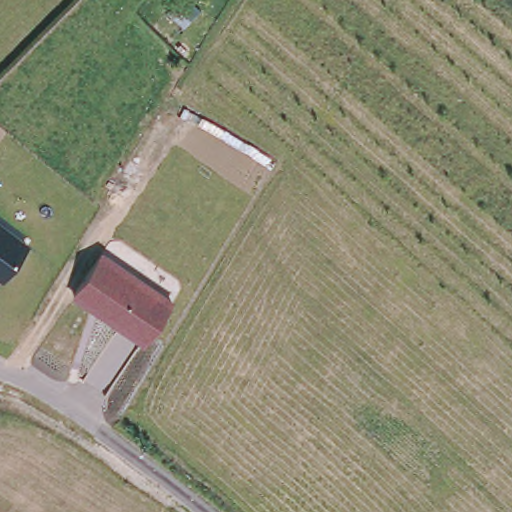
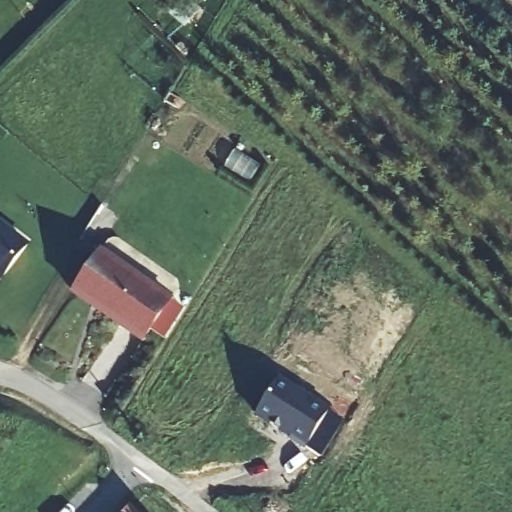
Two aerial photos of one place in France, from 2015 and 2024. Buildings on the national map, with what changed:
unchanged [(28,247),(1,282),(0,282),(0,226),(28,247)]
unchanged [(101,247),(173,297),(144,341),(71,293),(101,247)]
new [(307,446),(305,449),(254,416),(279,378),(329,411),(344,421),(322,455),(307,446)]
unchanged [(141,512),(116,512),(115,511),(127,498),(141,512)]

